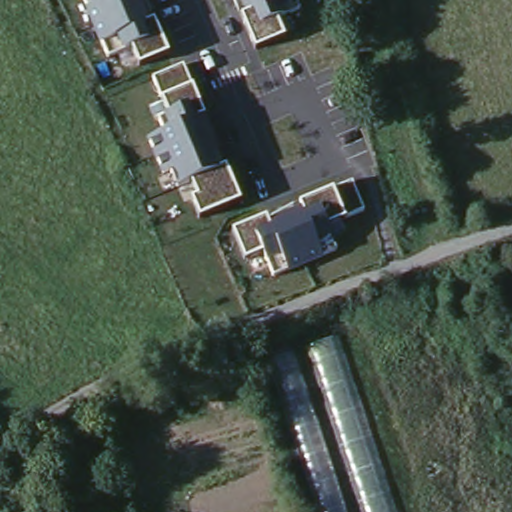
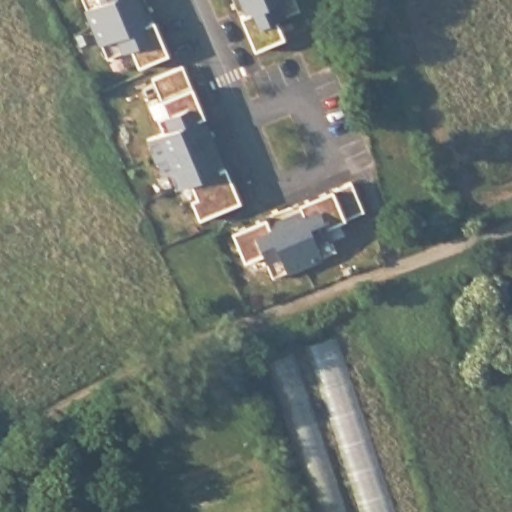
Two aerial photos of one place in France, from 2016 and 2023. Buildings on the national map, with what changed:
unchanged [(109,60),(85,0),(134,0),(145,25),(157,21),(171,55),(140,67),(133,49),(109,60)]
unchanged [(278,21),(286,40),(255,52),(240,19),(248,16),(241,0),(298,0),(302,10),(278,21)]
unchanged [(193,88),(240,204),(200,219),(194,201),(199,199),(194,184),(179,188),(173,173),(163,176),(150,141),(170,132),(163,119),(170,115),(164,102),(155,81),(184,68),(193,88)]
unchanged [(366,212),(348,220),(330,228),(339,250),(273,280),(267,264),(263,254),(246,261),(233,231),(268,217),(271,224),(304,209),(300,203),(334,191),(353,183),(366,212)]
unchanged [(264,354),(339,330),(397,512),(316,512),(264,354)]

